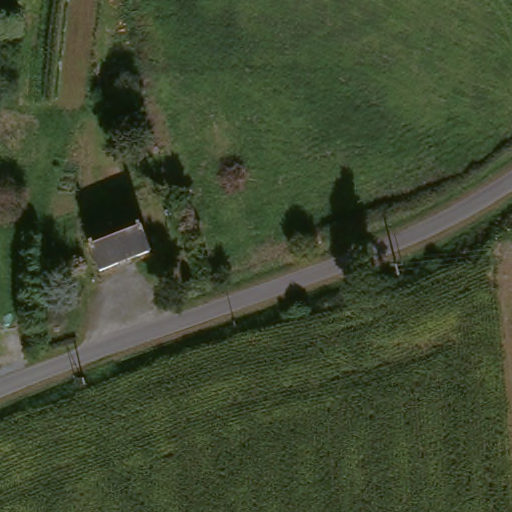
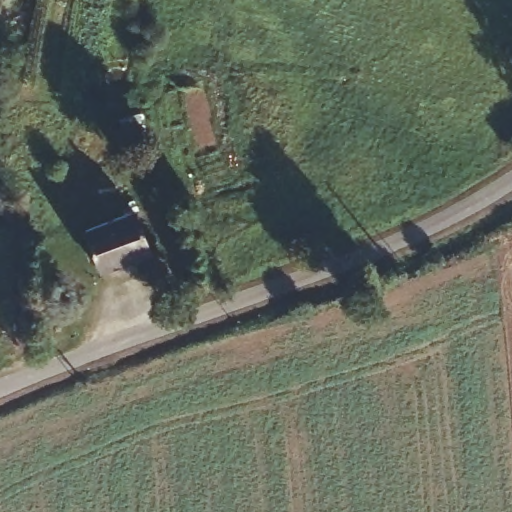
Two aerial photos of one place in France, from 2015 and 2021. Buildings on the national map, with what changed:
unchanged [(141,209),(153,248),(104,265),(92,225),(141,209)]

